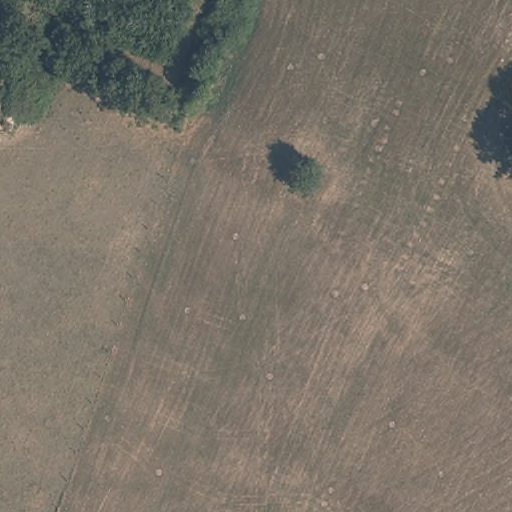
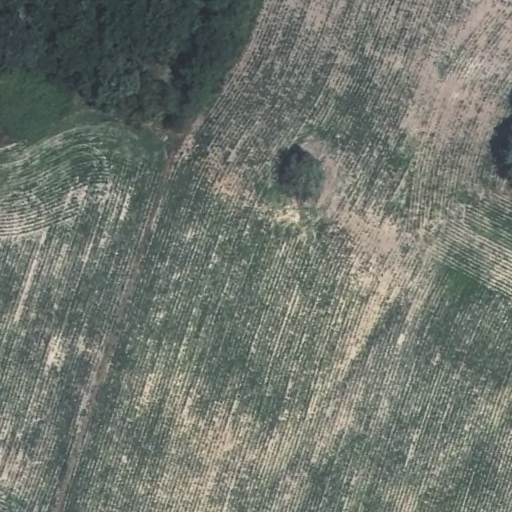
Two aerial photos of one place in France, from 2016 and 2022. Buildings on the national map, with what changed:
[]

